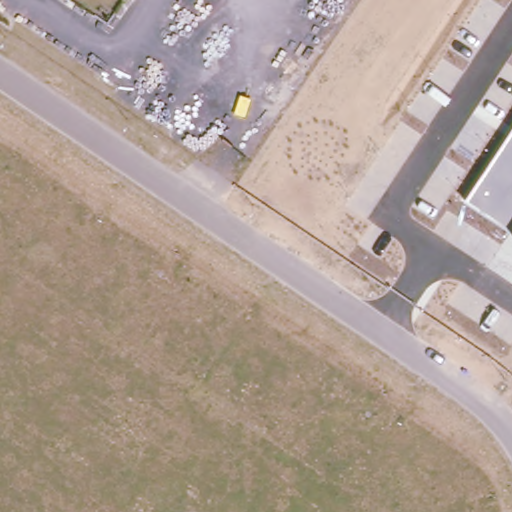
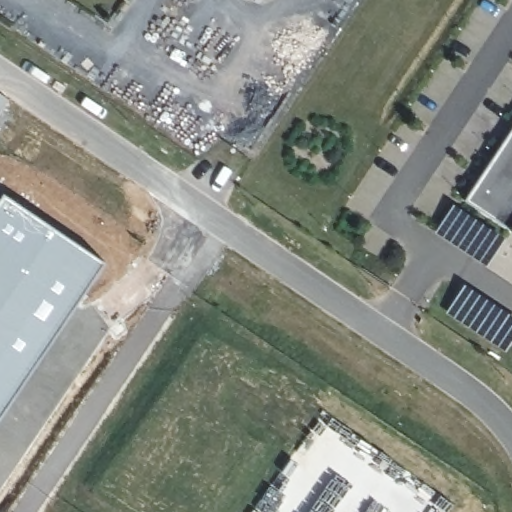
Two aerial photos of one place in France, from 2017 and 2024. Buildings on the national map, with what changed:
new [(347,0),(351,0),(349,1),(347,0)]
unchanged [(512,228),(467,199),(512,130),(512,228)]
new [(0,416),(0,197),(3,193),(104,261),(0,416)]
new [(504,239),(487,265),(436,232),(454,205),(504,239)]
new [(512,341),(507,349),(448,310),(465,285),(512,316),(512,341)]

